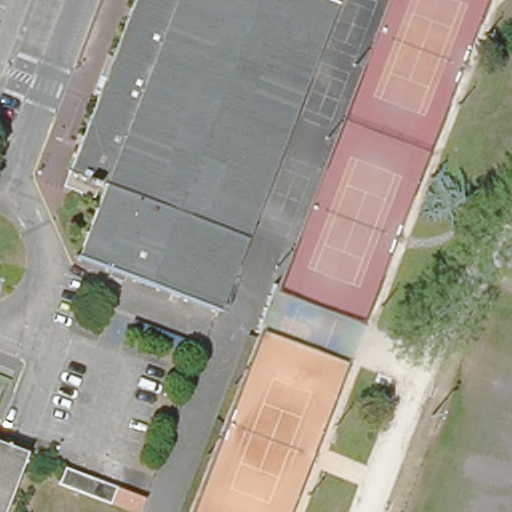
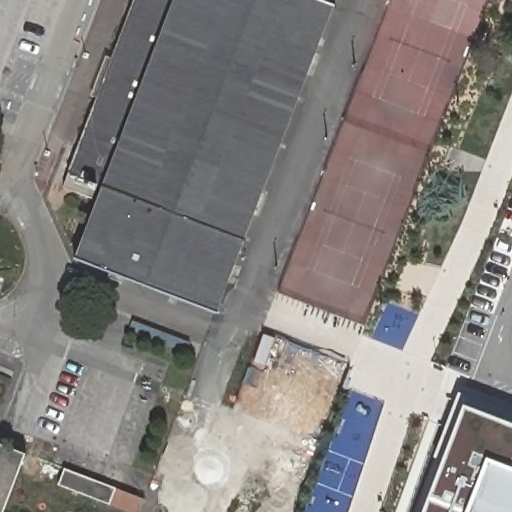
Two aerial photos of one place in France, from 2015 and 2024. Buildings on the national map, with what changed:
unchanged [(129,0),(331,0),(334,1),(217,307),(72,250),(101,180),(96,179),(91,192),(60,179),(129,0)]
new [(415,512),(435,458),(425,456),(455,390),(512,412),(512,512),(415,512)]
unchanged [(0,510),(0,434),(27,444),(0,510)]
unchanged [(121,488),(114,507),(64,488),(70,469),(121,488)]

